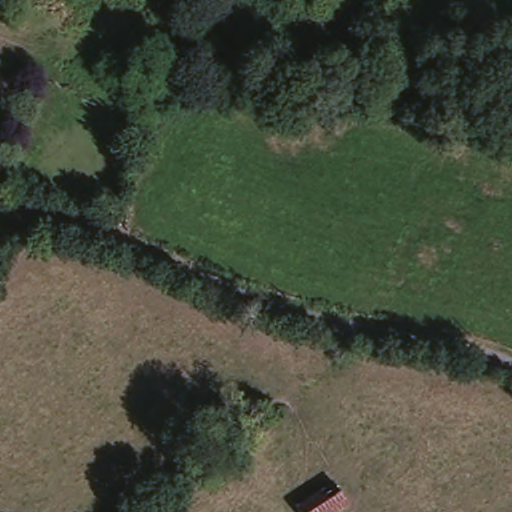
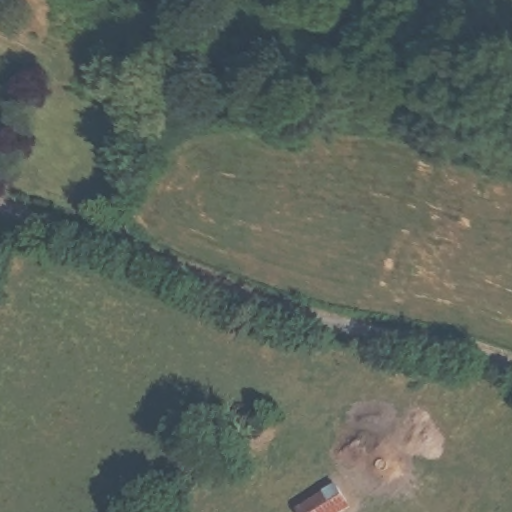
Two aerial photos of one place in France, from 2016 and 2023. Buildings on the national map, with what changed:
unchanged [(339,482),(354,505),(343,512),(295,512),(339,482)]

